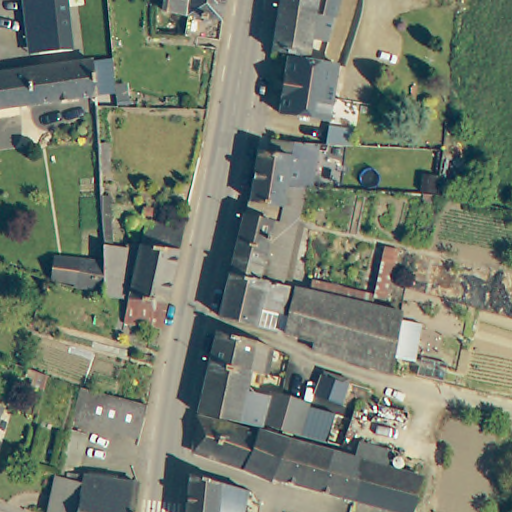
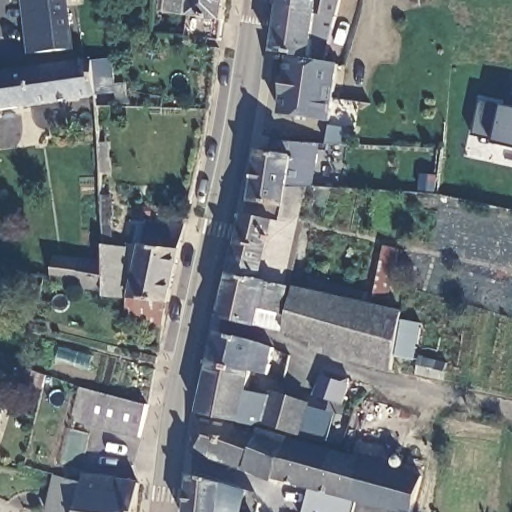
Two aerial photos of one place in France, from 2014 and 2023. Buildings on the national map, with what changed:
unchanged [(74,48),(30,53),(22,0),(68,0),(74,48)]
unchanged [(163,5),(163,0),(224,0),(218,43),(181,38),(185,8),(163,5)]
unchanged [(315,0),(339,0),(323,62),(273,50),(280,5),(313,11),(315,0)]
unchanged [(280,5),(280,0),(315,0),(313,11),(280,5)]
unchanged [(326,121),(276,112),(287,58),(335,65),(326,121)]
unchanged [(0,72),(18,70),(90,60),(95,95),(0,107),(0,72)]
new [(495,142),(475,136),(482,99),(505,105),(512,107),(512,146),(495,142)]
unchanged [(244,212),(246,212),(250,196),(258,146),(270,147),(271,137),(316,143),(311,186),(304,187),(295,223),(288,258),(282,281),(231,270),(244,212)]
unchanged [(103,272),(100,207),(100,199),(110,201),(111,217),(111,251),(125,254),(123,302),(105,298),(105,294),(60,282),(64,261),(103,272)]
unchanged [(120,327),(126,303),(145,224),(181,232),(163,311),(158,336),(120,327)]
unchanged [(288,283),(277,328),(221,314),(231,270),(282,281),(288,283)]
unchanged [(376,302),(363,364),(313,345),(315,337),(283,328),(293,284),(376,302)]
unchanged [(384,304),(400,309),(387,373),(363,364),(376,302),(384,304)]
unchanged [(217,332),(273,345),(273,349),(268,372),(267,372),(251,368),(211,359),(217,332)]
unchanged [(200,409),(211,359),(251,368),(249,390),(268,394),(262,423),(200,409)]
unchanged [(320,366),(346,374),(345,378),(337,410),(351,415),(343,444),(301,432),(309,404),(319,369),(320,366)]
unchanged [(135,437),(72,418),(81,386),(140,403),(144,405),(135,437)]
unchanged [(309,404),(301,432),(300,432),(290,430),(262,423),(268,394),(309,404)]
unchanged [(0,406),(4,407),(0,419),(0,406)]
unchanged [(243,467),(194,451),(198,415),(253,430),(243,467)]
unchanged [(273,472),(271,477),(243,467),(253,430),(259,431),(261,426),(288,435),(273,472)]
unchanged [(288,435),(354,455),(359,439),(390,450),(386,466),(364,459),(353,496),(273,472),(288,435)]
unchanged [(386,466),(390,450),(423,461),(409,512),(406,512),(353,496),(364,459),(386,466)]
unchanged [(219,481),(219,486),(238,487),(234,512),(186,512),(191,473),(219,481)]
unchanged [(66,474),(136,484),(134,512),(46,512),(51,480),(51,475),(65,477),(66,474)]

